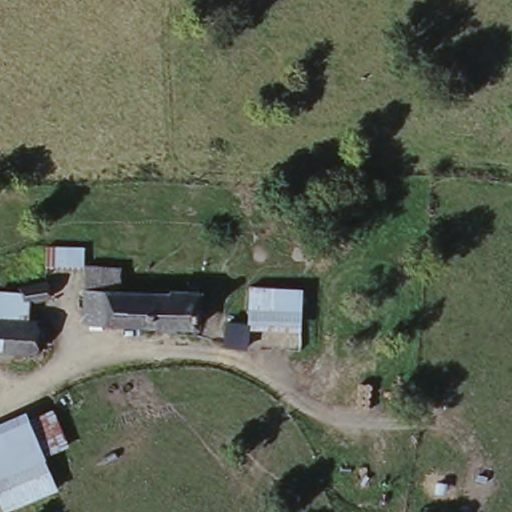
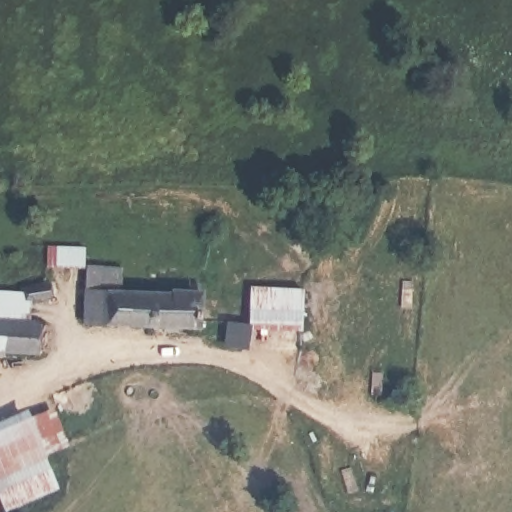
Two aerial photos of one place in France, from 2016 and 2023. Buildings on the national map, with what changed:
unchanged [(85,269),(47,267),(49,242),(90,244),(90,262),(85,269)]
unchanged [(82,319),(85,269),(90,262),(127,263),(126,280),(201,282),(200,324),(82,319)]
unchanged [(47,275),(54,293),(31,302),(30,313),(41,314),(37,352),(0,348),(0,285),(19,287),(47,275)]
unchanged [(248,324),(247,282),(301,281),(302,323),(248,324)]
unchanged [(45,452),(60,485),(4,510),(0,502),(0,413),(25,402),(30,413),(52,403),(69,441),(45,452)]

